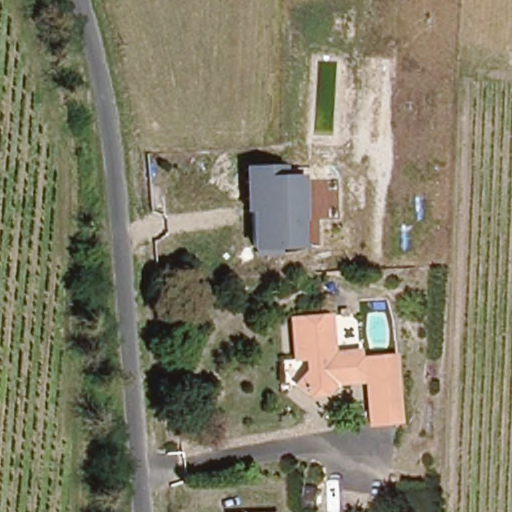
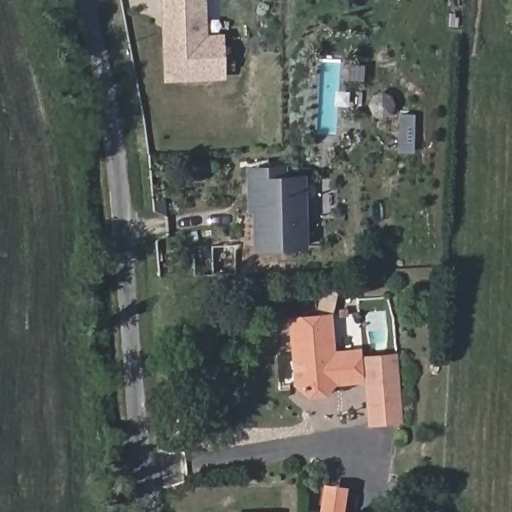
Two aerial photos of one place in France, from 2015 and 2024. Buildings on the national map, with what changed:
new [(222,37),(224,77),(167,80),(165,45),(180,44),(178,14),(165,15),(164,0),(204,0),(205,39),(222,37)]
unchanged [(252,251),(252,213),(245,214),(245,167),(286,166),(286,176),(307,176),(309,249),(252,251)]
unchanged [(332,316),(335,353),(360,351),(361,358),(396,356),(402,421),(372,422),(368,370),(362,370),(362,379),(337,381),(326,392),(309,392),(300,382),(297,380),(300,377),(310,367),(309,355),(301,356),(296,356),(293,318),(302,318),(332,316)]

